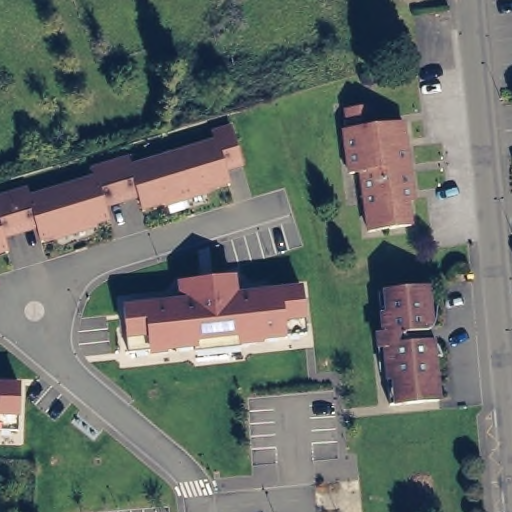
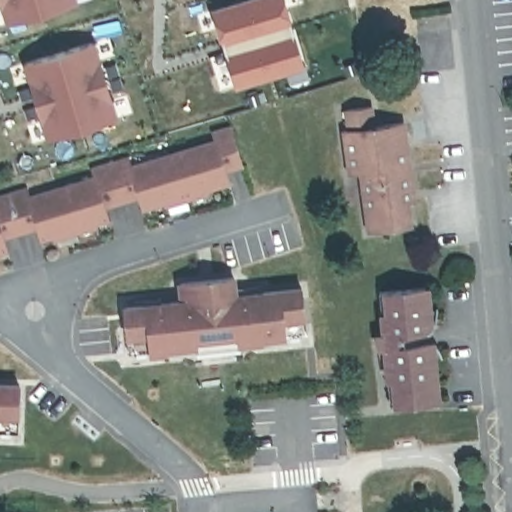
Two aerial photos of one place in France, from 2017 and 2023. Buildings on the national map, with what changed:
new [(0,0),(78,0),(79,2),(7,25),(0,4),(0,0)]
new [(237,86),(214,12),(254,0),(286,0),(305,66),(237,86)]
new [(23,63),(95,42),(118,118),(47,141),(23,63)]
unchanged [(410,228),(367,232),(361,174),(349,175),(345,131),(348,130),(347,111),(370,108),(372,127),(396,125),(405,124),(405,139),(402,143),(402,148),(407,148),(409,174),(410,186),(412,194),(407,194),(410,228)]
unchanged [(230,173),(233,185),(142,212),(138,200),(109,210),(112,222),(42,244),(37,231),(7,239),(11,254),(0,257),(0,194),(27,185),(30,194),(92,175),(90,168),(129,155),(132,163),(212,138),(209,131),(230,124),(245,167),(230,173)]
unchanged [(307,320),(287,322),(287,339),(262,342),(263,345),(240,347),(242,353),(194,357),(194,351),(149,354),(127,356),(127,340),(122,304),(177,299),(176,282),(237,276),(239,293),(302,286),(307,320)]
unchanged [(430,309),(437,308),(435,323),(432,329),(433,342),(442,356),(435,357),(439,402),(390,406),(380,293),(427,289),(430,309)]
unchanged [(17,433),(0,433),(0,382),(22,383),(18,418),(17,433)]

